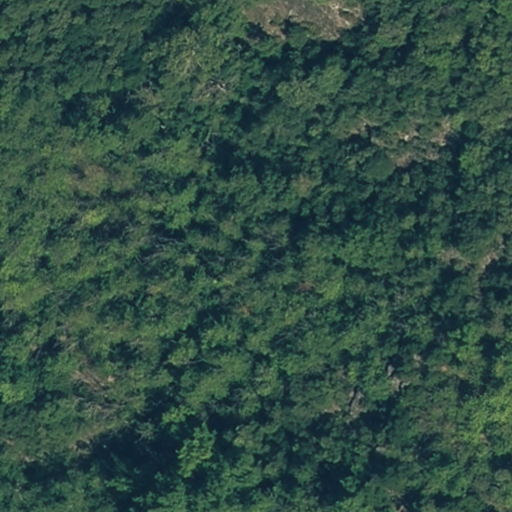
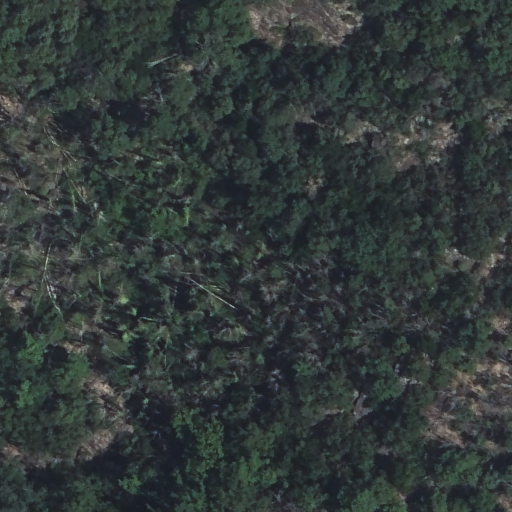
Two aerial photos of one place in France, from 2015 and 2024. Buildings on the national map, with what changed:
[]

